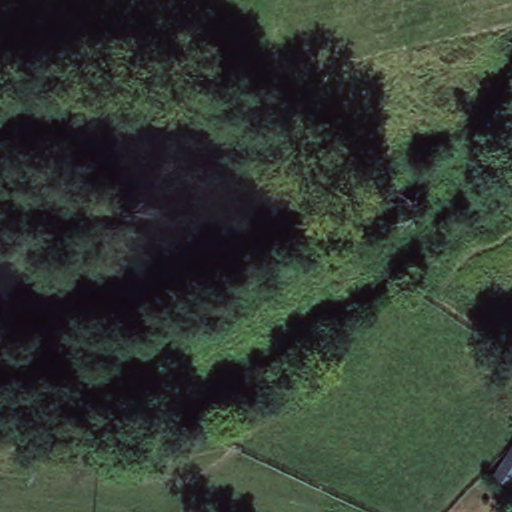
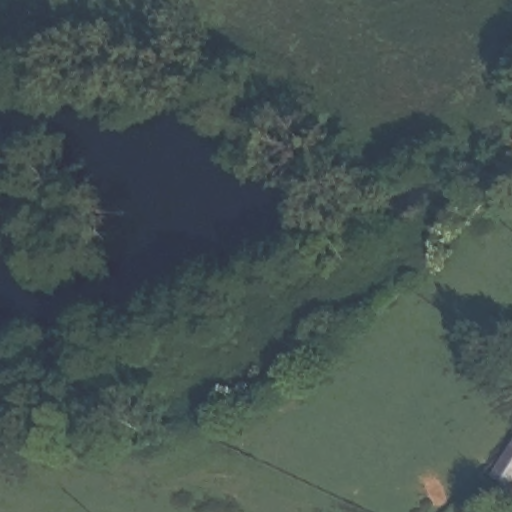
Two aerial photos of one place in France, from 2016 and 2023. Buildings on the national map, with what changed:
unchanged [(512,440),(512,491),(487,478),(512,440)]

